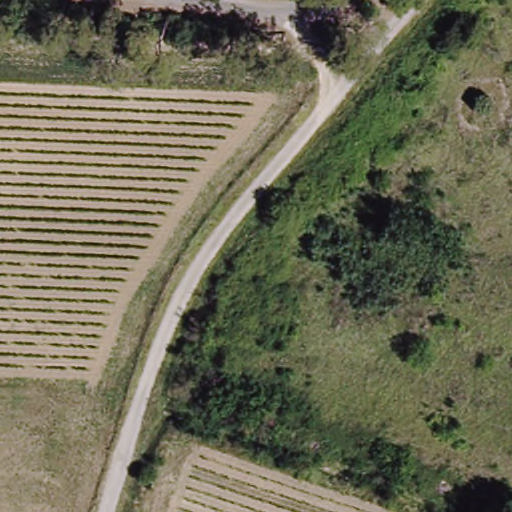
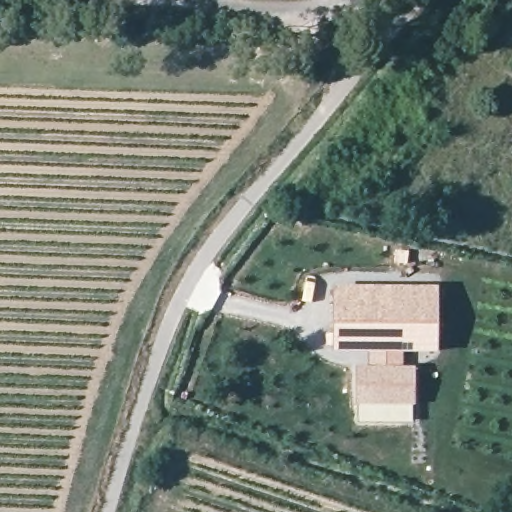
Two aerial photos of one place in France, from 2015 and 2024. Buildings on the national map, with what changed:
new [(356,405),(355,366),(369,367),(370,352),(332,353),(332,285),(438,285),(437,352),(403,352),(403,366),(414,366),(415,405),(356,405)]

